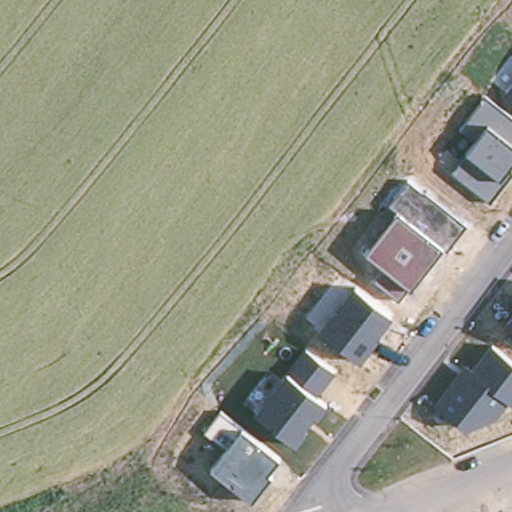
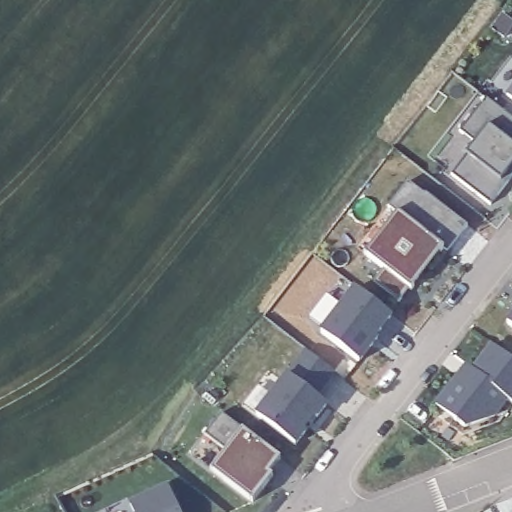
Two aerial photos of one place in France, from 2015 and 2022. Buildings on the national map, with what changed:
unchanged [(512,88),(512,101),(505,96),(512,88)]
unchanged [(512,176),(488,206),(449,175),(465,156),(464,155),(473,143),(458,131),(485,98),(512,120),(512,167),(509,171),(512,173),(512,176)]
unchanged [(414,288),(411,291),(408,290),(398,303),(395,301),(395,299),(375,283),(385,271),(365,255),(367,251),(394,217),(397,214),(388,208),(408,182),(425,195),(463,225),(464,224),(467,227),(465,231),(462,229),(445,252),(443,250),(440,253),(412,286),(414,288)]
unchanged [(355,289),(390,317),(375,338),(376,339),(357,363),(320,333),(355,289)]
unchanged [(512,320),(512,329),(507,326),(512,320)]
unchanged [(457,379),(466,367),(472,372),(492,347),(512,363),(512,406),(507,402),(495,418),(465,430),(453,421),(435,408),(444,396),(457,379)]
unchanged [(255,415),(306,352),(333,374),(314,397),(325,406),(315,419),(312,416),(300,430),(303,433),(293,446),(255,415)]
unchanged [(280,460),(268,474),(272,477),(251,503),(210,470),(225,451),(204,434),(220,413),(239,427),(280,460)]
new [(134,512),(128,501),(167,483),(181,512),(134,512)]

